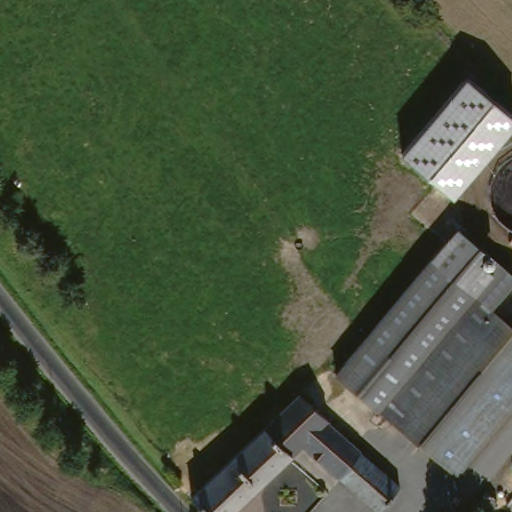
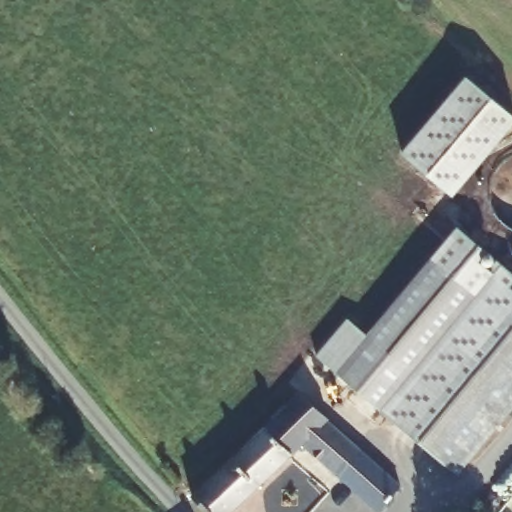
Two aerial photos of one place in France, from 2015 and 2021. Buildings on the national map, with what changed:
unchanged [(467,77),(512,115),(512,126),(453,196),(402,152),(467,77)]
unchanged [(455,227),(512,271),(512,284),(491,311),(432,262),(455,227)]
unchanged [(432,262),(466,290),(491,311),(512,329),(512,418),(461,480),(336,379),(432,262)]
new [(512,292),(512,329),(494,313),(491,311),(495,306),(508,289),(512,292)]
new [(338,376),(316,355),(347,320),(370,338),(338,376)]
unchanged [(191,499),(256,434),(273,417),(304,387),(335,417),(331,422),(411,492),(396,512),(382,512),(350,484),(305,443),(237,512),(204,512),(191,499)]

